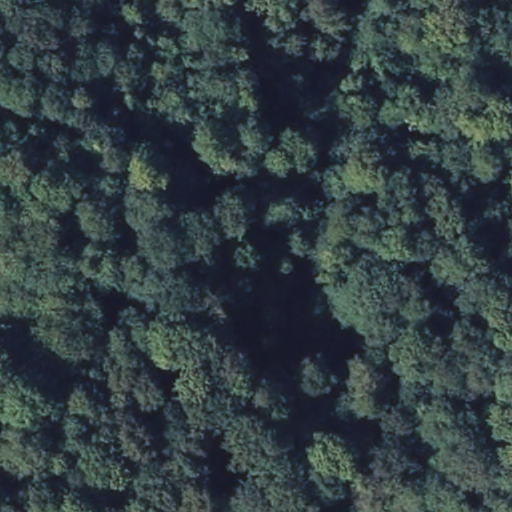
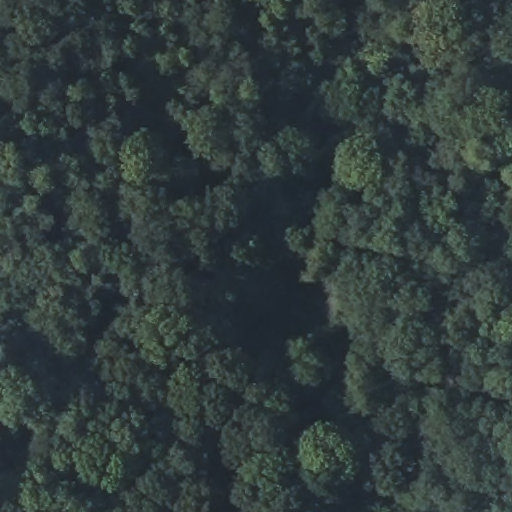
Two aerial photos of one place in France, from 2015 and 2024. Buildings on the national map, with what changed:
[]

